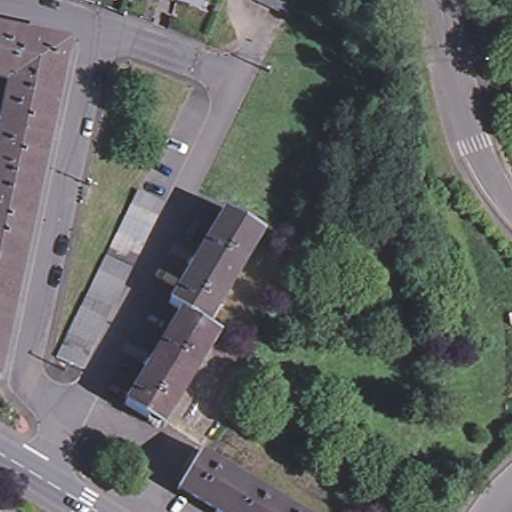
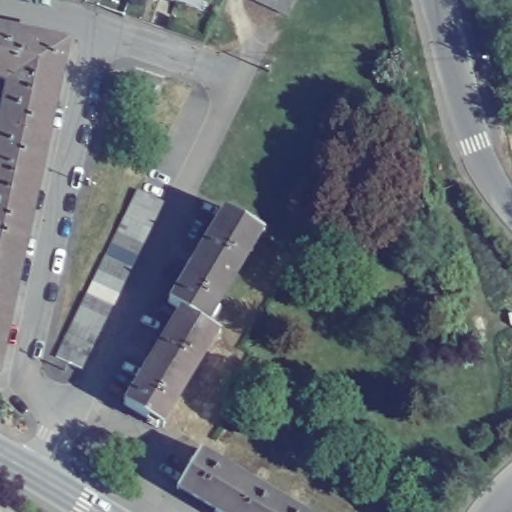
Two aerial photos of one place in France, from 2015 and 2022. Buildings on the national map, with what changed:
unchanged [(177,0),(193,0),(191,5),(177,0)]
unchanged [(254,0),(284,0),(278,12),(265,5),(254,0)]
unchanged [(40,171),(0,346),(0,133),(10,86),(0,84),(0,30),(68,46),(40,171)]
unchanged [(71,334),(77,321),(84,309),(90,296),(97,283),(103,271),(110,257),(117,245),(123,232),(130,220),(136,207),(142,194),(167,206),(160,219),(153,232),(147,244),(140,257),(135,269),(128,282),(122,295),(115,308),(108,321),(102,333),(95,346),(89,359),(82,372),(58,360),(65,346),(71,334)]
unchanged [(145,367),(143,365),(150,354),(152,355),(178,310),(165,302),(187,265),(185,263),(192,251),(195,252),(222,208),(258,229),(203,326),(214,332),(160,425),(123,404),(145,367)]
unchanged [(288,504),(304,512),(215,512),(177,492),(197,457),(288,504)]

